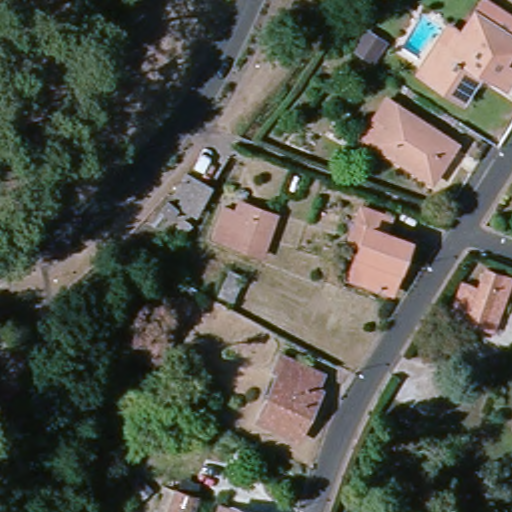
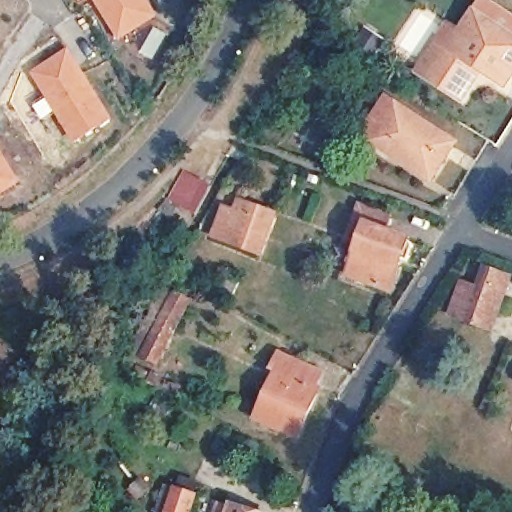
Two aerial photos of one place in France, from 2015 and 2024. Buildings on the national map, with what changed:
new [(120,41),(94,0),(150,0),(160,17),(120,41)]
unchanged [(443,64),(472,21),(512,48),(512,75),(500,94),(479,79),(458,108),(424,85),(439,61),(443,64)]
unchanged [(364,30),(384,42),(373,59),(354,46),(364,30)]
new [(114,121),(76,144),(31,73),(71,49),(114,121)]
unchanged [(445,152),(422,189),(364,150),(353,143),(363,126),(377,106),(445,152)]
new [(0,197),(0,148),(23,183),(0,197)]
unchanged [(168,219),(175,204),(164,197),(179,177),(203,193),(187,221),(168,219)]
unchanged [(225,212),(236,216),(239,206),(276,219),(262,258),(214,241),(225,212)]
unchanged [(340,243),(352,209),(381,221),(377,235),(400,243),(382,294),(340,280),(352,247),(340,243)]
unchanged [(484,338),(441,323),(453,291),(469,297),(477,277),(502,286),(497,303),(489,323),(484,338)]
unchanged [(229,281),(243,288),(231,310),(217,303),(229,281)]
unchanged [(156,298),(163,302),(169,288),(188,298),(148,373),(133,365),(124,360),(156,298)]
unchanged [(269,373),(275,358),(317,377),(310,392),(315,394),(294,442),(252,423),(274,375),(269,373)]
unchanged [(193,505),(190,512),(158,512),(160,505),(156,504),(159,494),(193,505)]
unchanged [(225,511),(227,510),(235,512),(215,512),(217,508),(225,511)]

